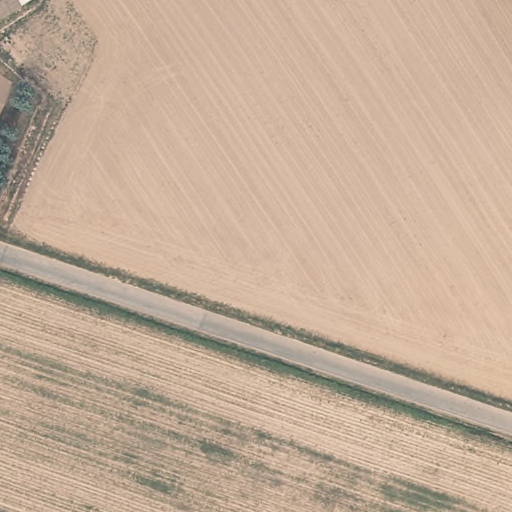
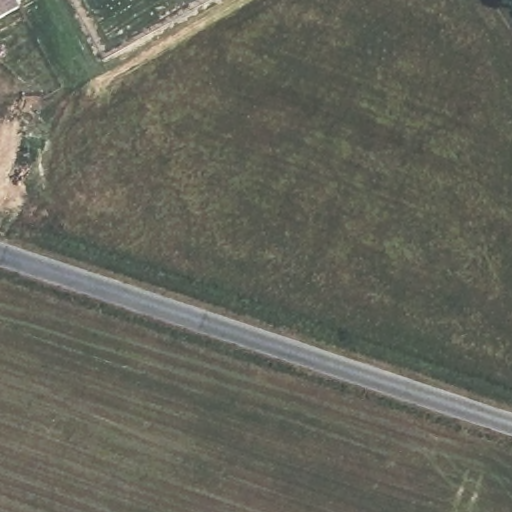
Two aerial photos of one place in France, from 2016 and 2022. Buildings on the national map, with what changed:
unchanged [(0,12),(0,0),(20,0),(0,12)]

